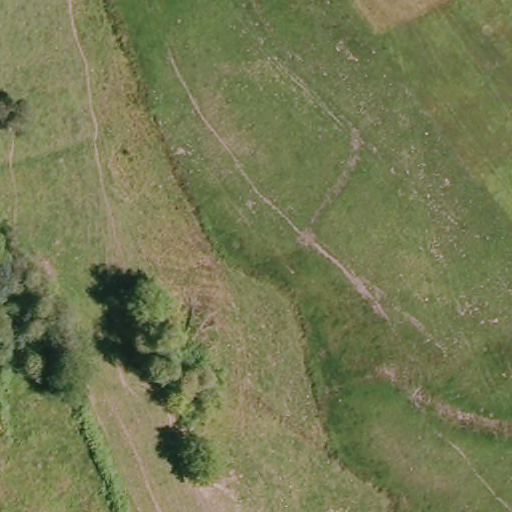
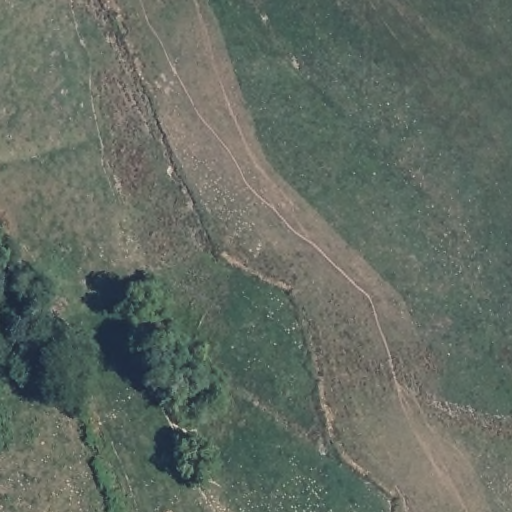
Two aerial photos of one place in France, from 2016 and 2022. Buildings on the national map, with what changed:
[]

